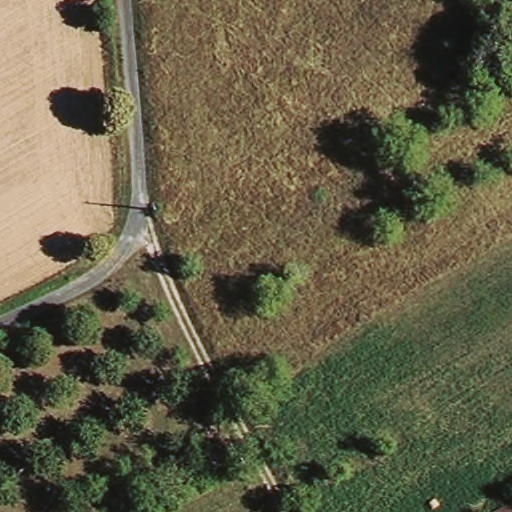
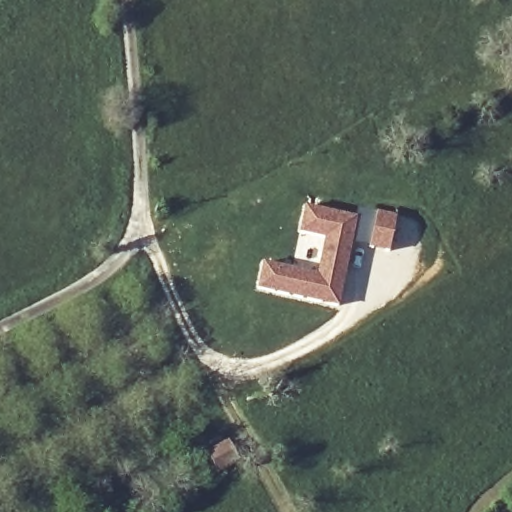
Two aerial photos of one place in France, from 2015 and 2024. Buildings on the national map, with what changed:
new [(263,260),(302,267),(304,260),(319,263),(324,239),(300,234),(305,205),(360,216),(339,306),(257,290),(263,260)]
new [(377,210),(397,215),(390,250),(369,246),(377,210)]
unchanged [(208,448),(227,438),(237,457),(218,467),(208,448)]
unchanged [(506,508),(502,500),(512,494),(512,512),(499,512),(506,508)]

